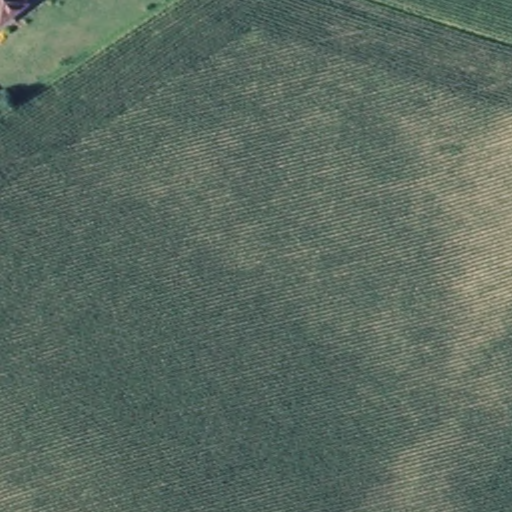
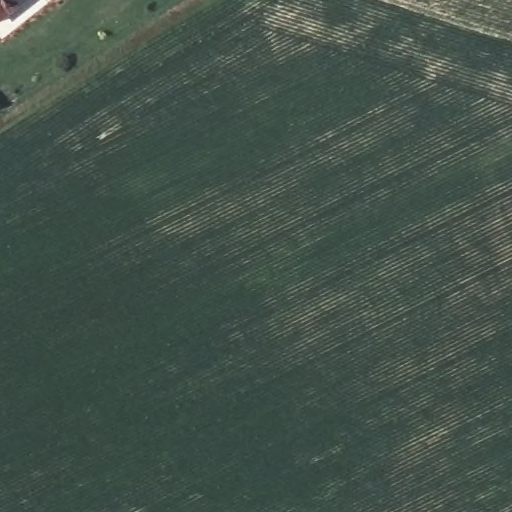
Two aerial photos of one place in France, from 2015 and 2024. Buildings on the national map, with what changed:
unchanged [(27,6),(0,26),(0,0),(22,0),(27,6)]

